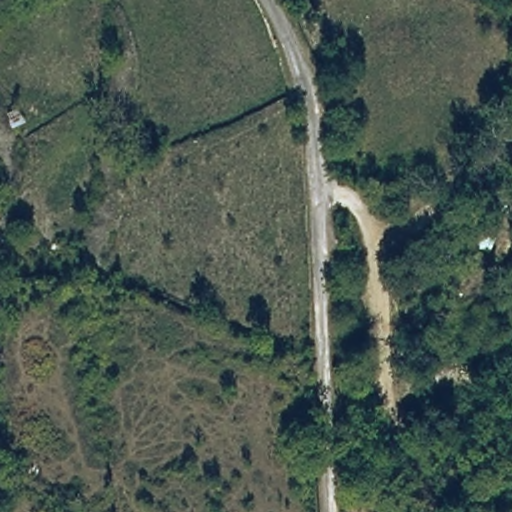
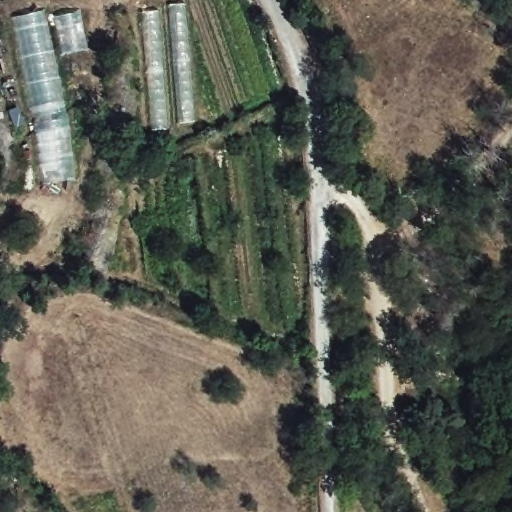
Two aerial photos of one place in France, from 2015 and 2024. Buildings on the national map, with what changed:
new [(186,3),(196,122),(152,131),(143,11),(186,3)]
new [(45,11),(67,115),(75,181),(42,186),(34,124),(11,17),(45,11)]

